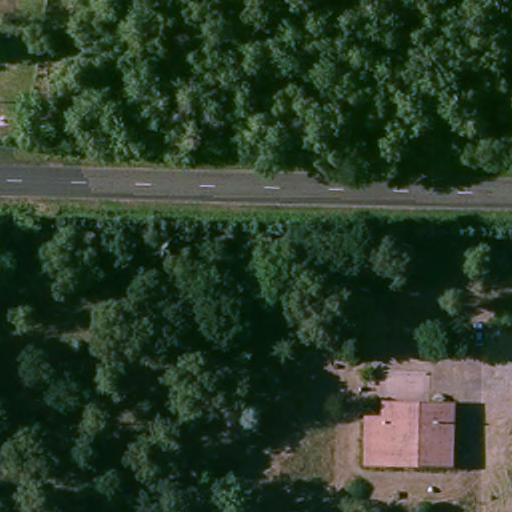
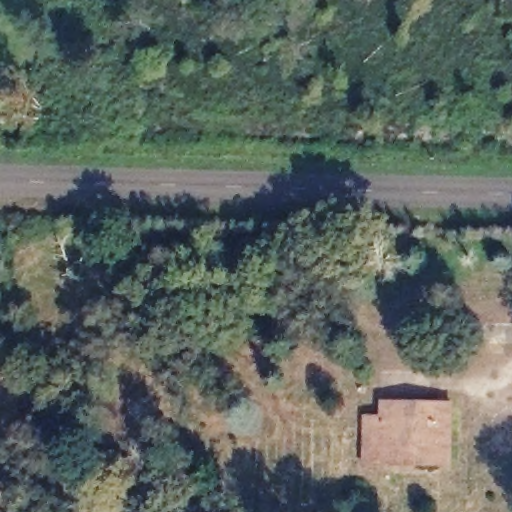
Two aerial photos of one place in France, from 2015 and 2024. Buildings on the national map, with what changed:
unchanged [(423,466),(370,464),(372,423),(389,423),(389,409),(434,411),(459,411),(458,451),(458,467),(423,466)]

